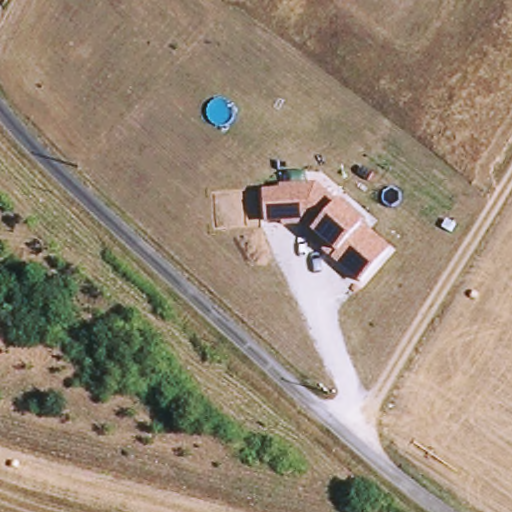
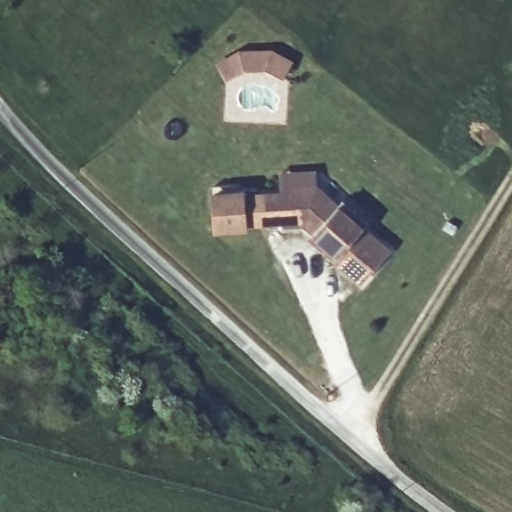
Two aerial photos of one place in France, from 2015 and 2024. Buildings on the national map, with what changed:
new [(266,70),(242,70),(225,81),(215,62),(239,50),(272,50),(294,61),(282,79),(266,70)]
unchanged [(302,229),(283,230),(283,224),(267,225),(265,191),(281,189),(281,185),(320,184),(392,247),(360,285),(302,229)]
new [(244,189),(246,230),(213,232),(211,191),(244,189)]

